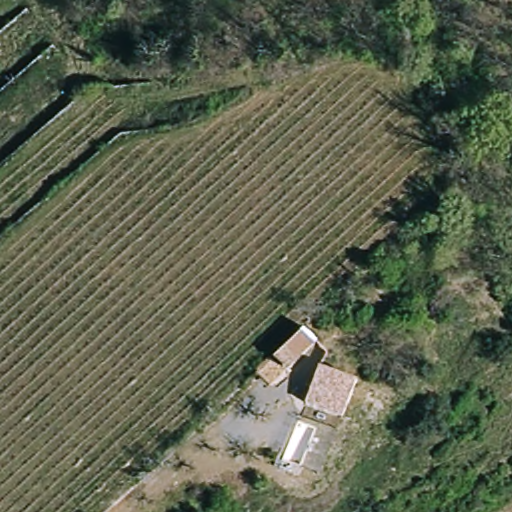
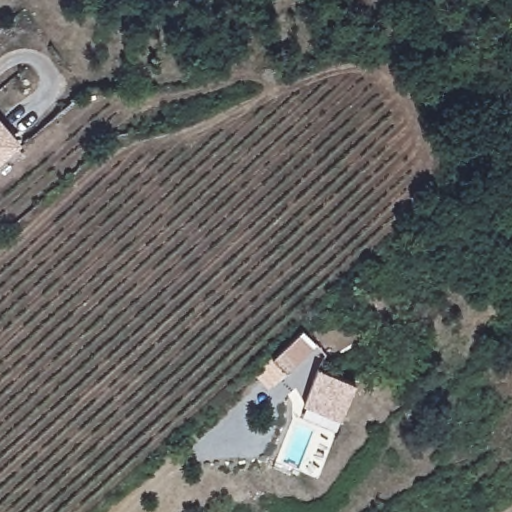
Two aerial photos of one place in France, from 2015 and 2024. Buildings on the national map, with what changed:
new [(0,162),(0,125),(19,146),(0,162)]
unchanged [(251,377),(271,358),(282,348),(303,328),(318,345),(298,363),(286,375),(267,392),(251,377)]
unchanged [(352,382),(338,418),(306,406),(320,370),(352,382)]

